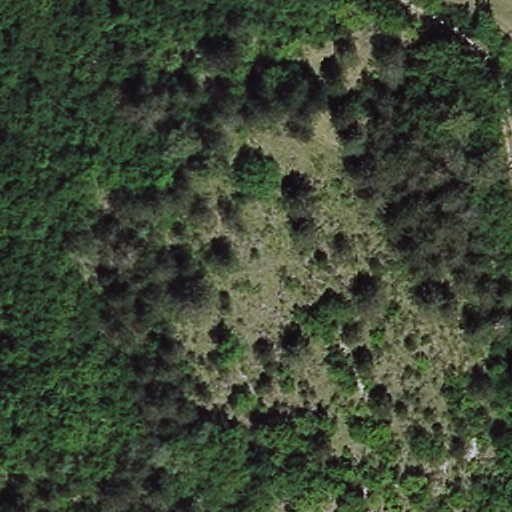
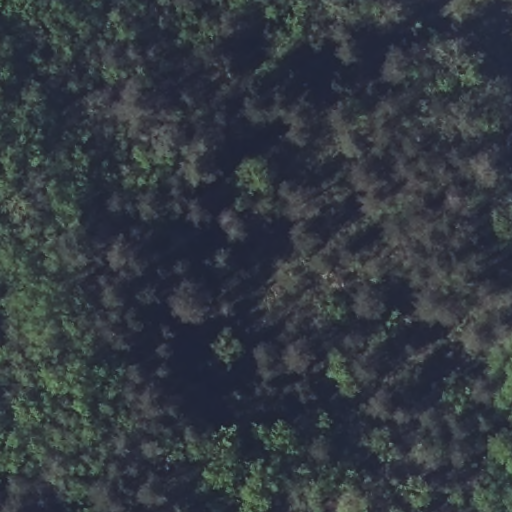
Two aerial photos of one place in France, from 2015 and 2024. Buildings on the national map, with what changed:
[]

